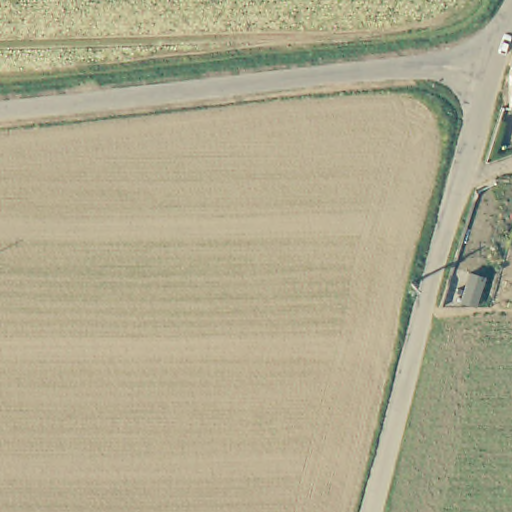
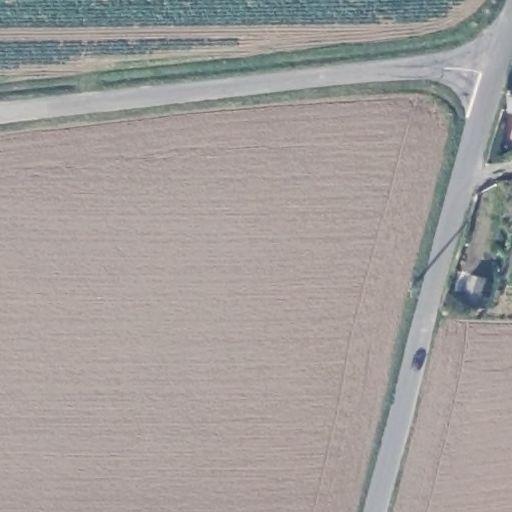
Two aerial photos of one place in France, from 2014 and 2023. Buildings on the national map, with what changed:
unchanged [(512,115),(510,115),(507,77),(512,64),(512,115)]
unchanged [(491,277),(484,303),(467,297),(477,272),(491,277)]

